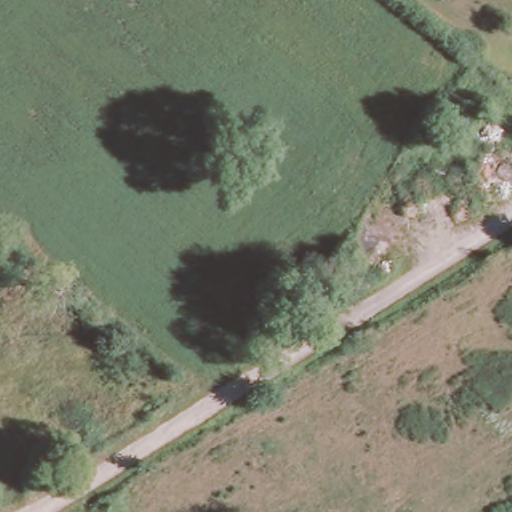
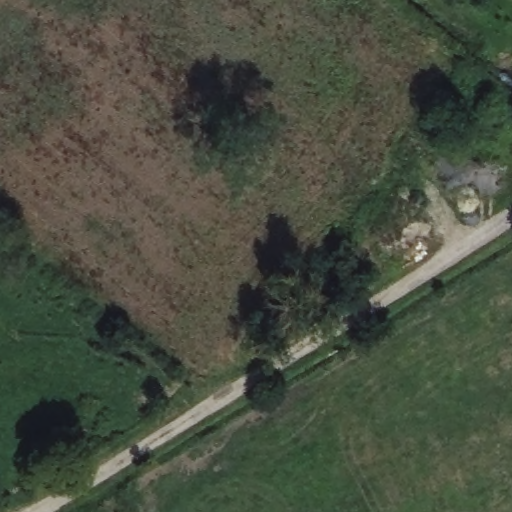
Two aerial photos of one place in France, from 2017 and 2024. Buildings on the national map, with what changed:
unchanged [(325,304),(345,290),(355,306),(335,320),(325,304)]

